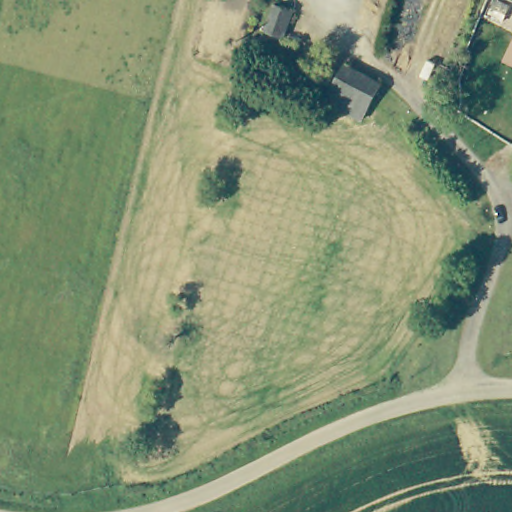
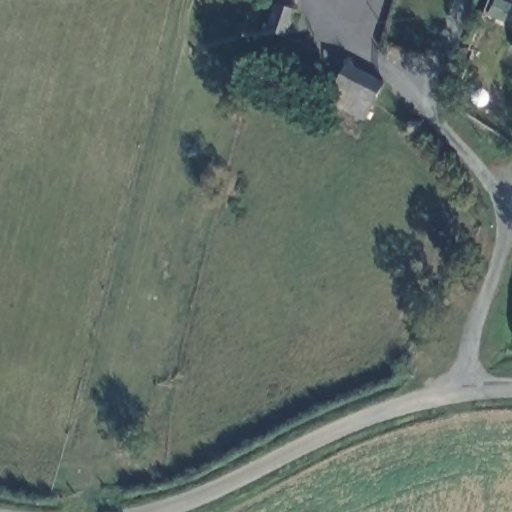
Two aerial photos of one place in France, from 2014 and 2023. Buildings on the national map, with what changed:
unchanged [(274,29),(257,20),(267,0),(277,0),(285,4),(274,29)]
unchanged [(471,5),(473,0),(492,0),(487,11),(471,5)]
unchanged [(348,59),(368,69),(382,75),(361,118),(349,111),(326,100),(348,59)]

